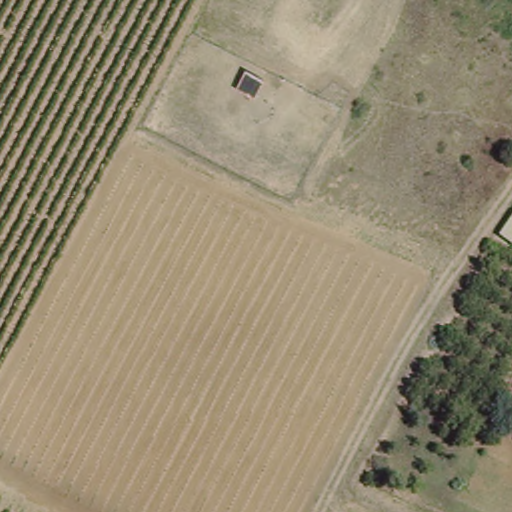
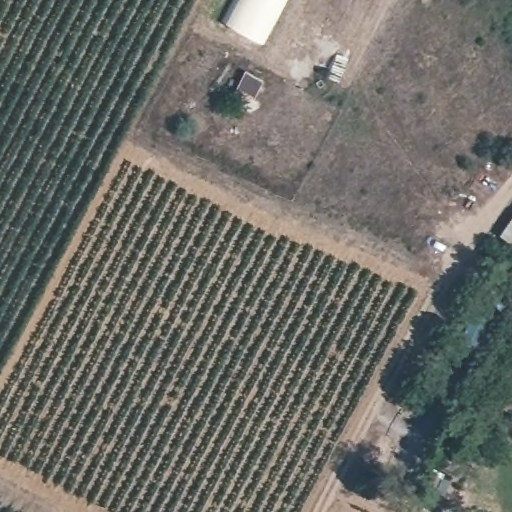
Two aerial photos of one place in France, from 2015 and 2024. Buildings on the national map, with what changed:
new [(263,42),(226,23),(238,0),(285,0),(263,42)]
new [(235,89),(247,69),(267,80),(256,101),(235,89)]
new [(512,220),(512,244),(501,236),(512,220)]

